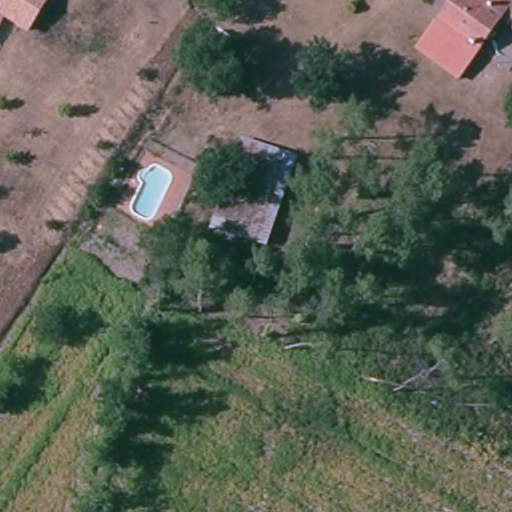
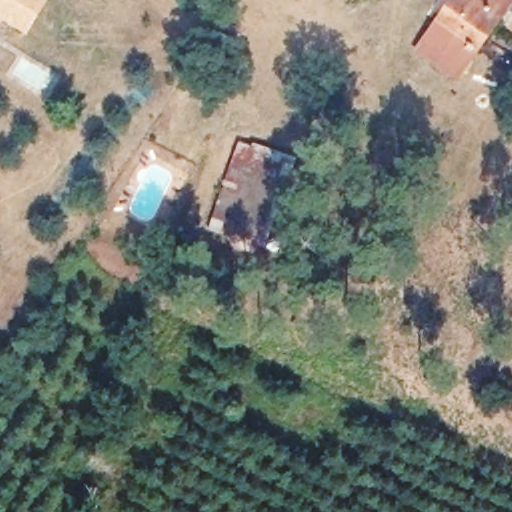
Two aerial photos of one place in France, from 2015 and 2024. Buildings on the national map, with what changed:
unchanged [(0,25),(0,0),(50,0),(26,35),(3,21),(0,25)]
unchanged [(499,21),(460,82),(418,55),(452,0),(512,0),(512,30),(499,21)]
unchanged [(273,237),(223,222),(241,161),(292,177),(273,237)]

